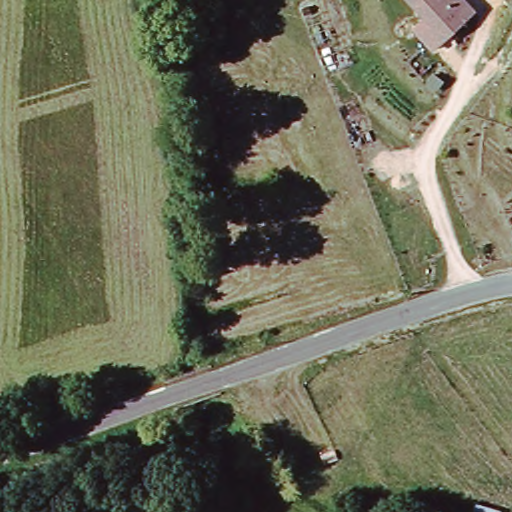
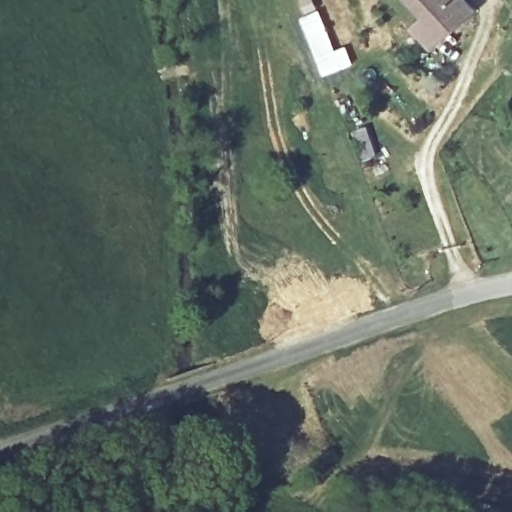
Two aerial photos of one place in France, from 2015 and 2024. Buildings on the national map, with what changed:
unchanged [(423,18),(406,0),(471,0),(479,9),(433,49),(414,26),(423,18)]
new [(305,24),(303,25),(300,17),(320,11),(334,50),(347,46),(354,65),(319,75),(305,24)]

